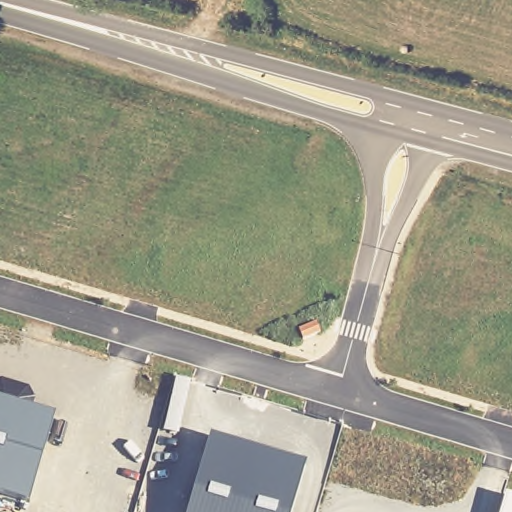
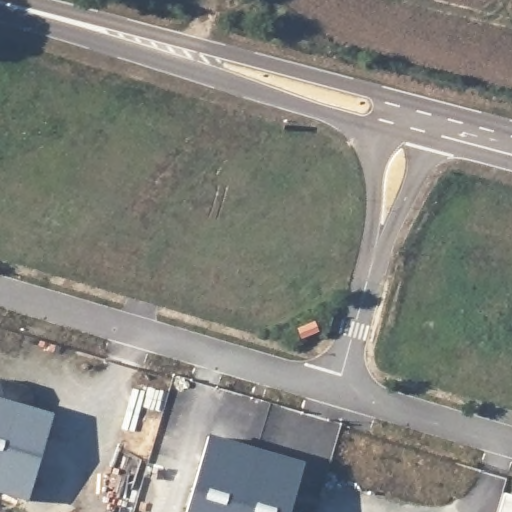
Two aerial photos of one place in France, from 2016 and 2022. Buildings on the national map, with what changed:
unchanged [(0,381),(2,379),(28,388),(34,397),(33,407),(56,412),(29,501),(0,493),(0,381)]
unchanged [(306,463),(291,512),(190,512),(212,435),(306,463)]
unchanged [(504,493),(512,496),(512,512),(498,512),(504,493)]

